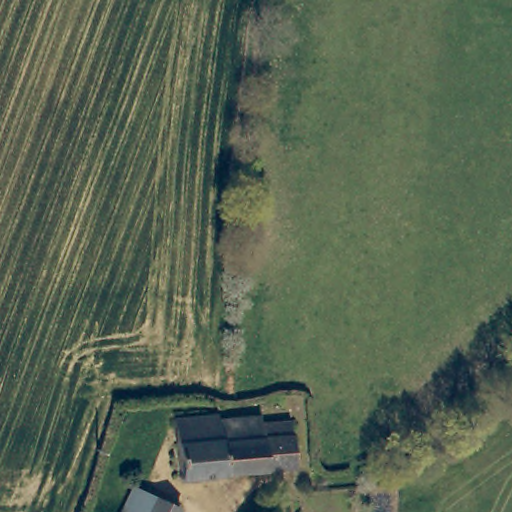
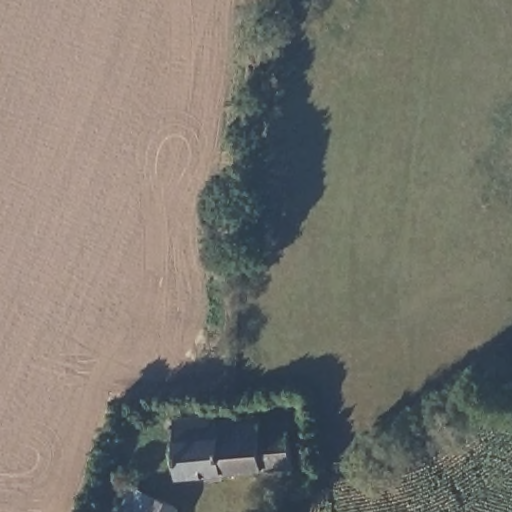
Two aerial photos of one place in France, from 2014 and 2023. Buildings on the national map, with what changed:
unchanged [(252,415),(253,420),(286,417),(290,466),(178,480),(173,423),(209,416),(209,420),(252,415)]
unchanged [(132,488),(180,509),(179,512),(122,512),(132,488)]

